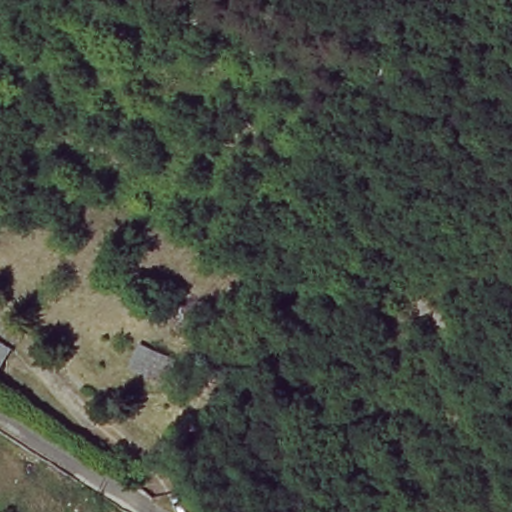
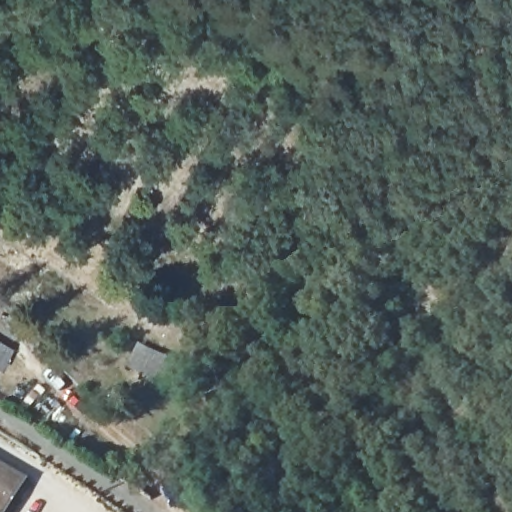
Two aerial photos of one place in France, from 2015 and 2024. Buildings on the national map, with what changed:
unchanged [(2,368),(0,367),(0,343),(13,350),(2,368)]
unchanged [(173,362),(161,383),(133,367),(146,345),(173,362)]
new [(12,512),(0,512),(0,462),(29,478),(12,512)]

